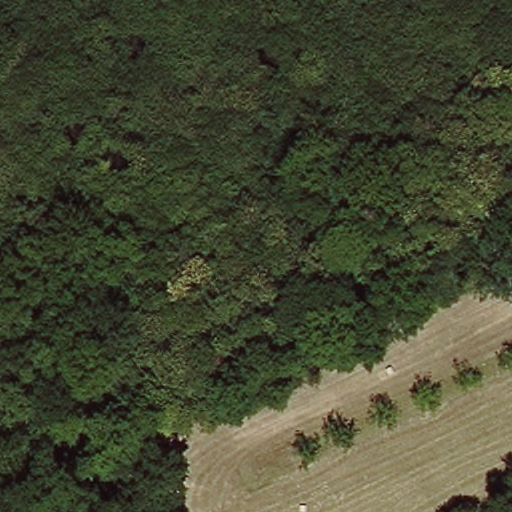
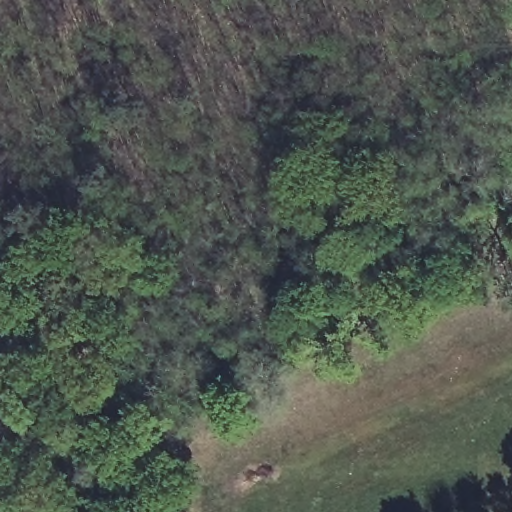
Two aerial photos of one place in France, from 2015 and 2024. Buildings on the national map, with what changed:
[]

